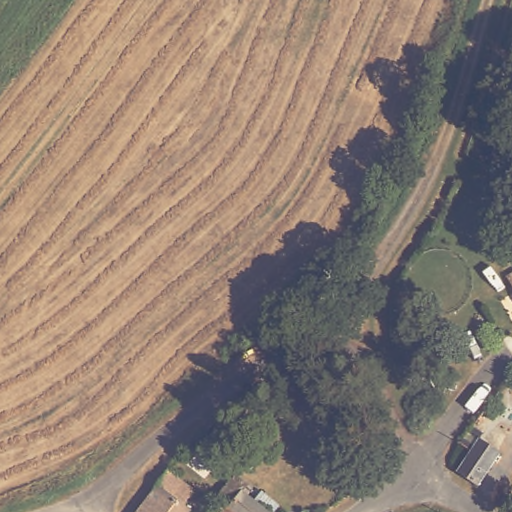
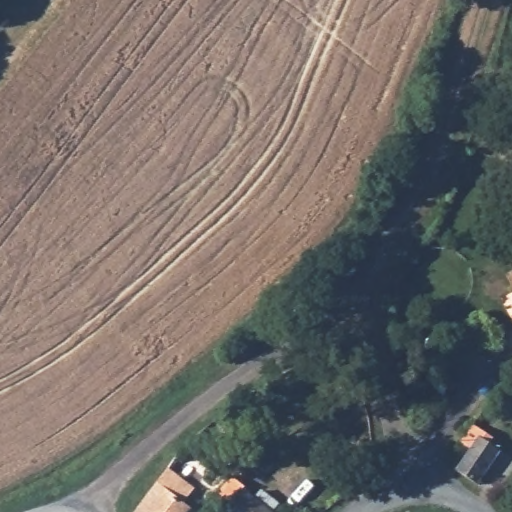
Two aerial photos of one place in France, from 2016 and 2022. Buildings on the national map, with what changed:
unchanged [(512,385),(512,415),(498,408),(512,385)]
unchanged [(478,486),(456,472),(472,450),(460,442),(467,432),(474,423),(484,430),(480,437),(501,450),(478,486)]
unchanged [(240,459),(225,448),(234,435),(249,446),(240,459)]
unchanged [(195,489),(183,505),(190,510),(188,512),(134,512),(166,468),(195,489)]
unchanged [(247,497),(268,512),(218,512),(225,502),(217,496),(232,477),(251,491),(247,497)]

